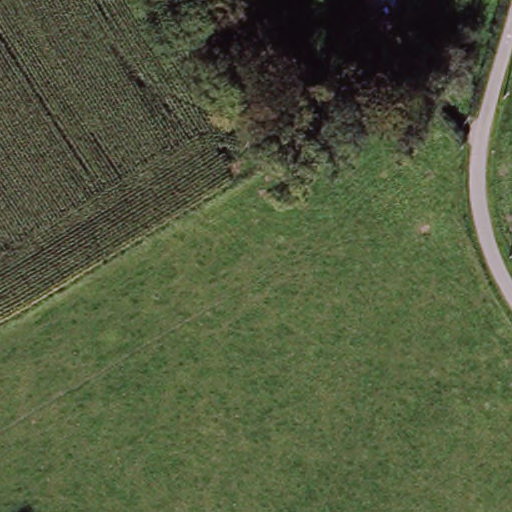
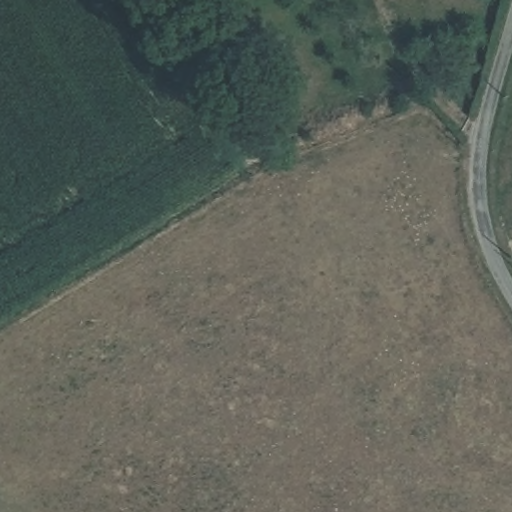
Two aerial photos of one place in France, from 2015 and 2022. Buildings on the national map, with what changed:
[]

